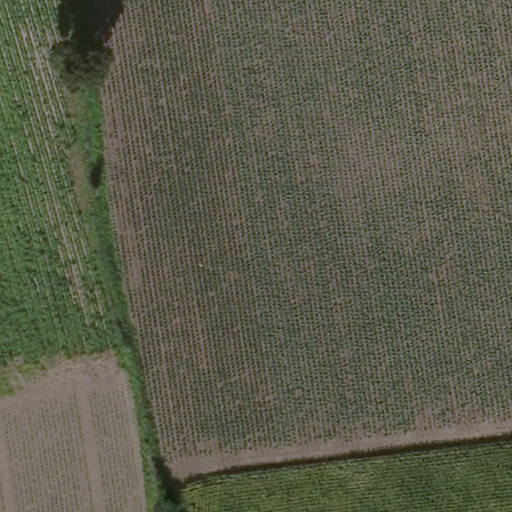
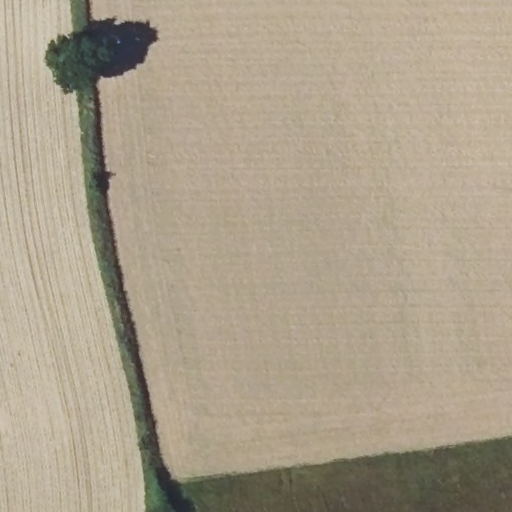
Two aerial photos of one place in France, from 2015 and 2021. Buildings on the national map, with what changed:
[]

